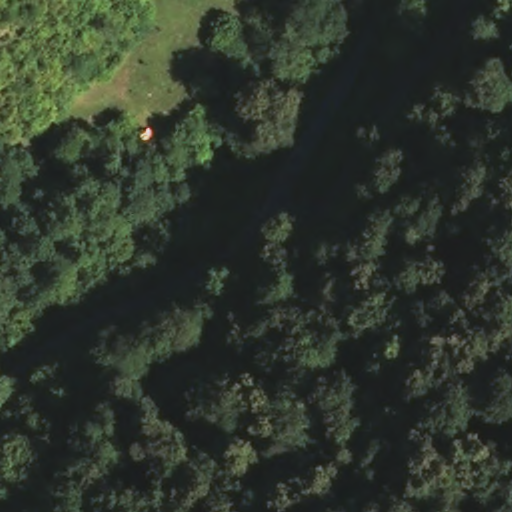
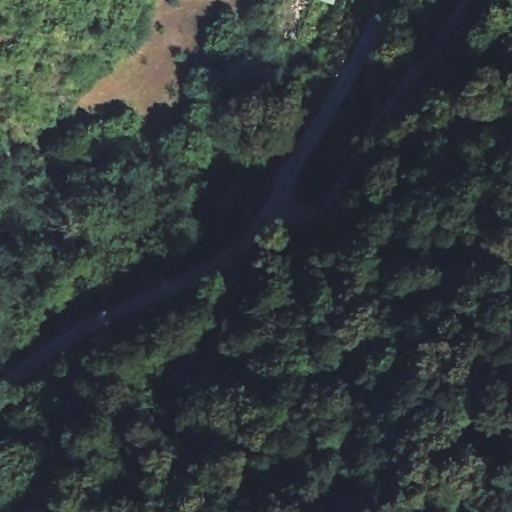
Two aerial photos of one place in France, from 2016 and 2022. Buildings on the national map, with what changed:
[]

